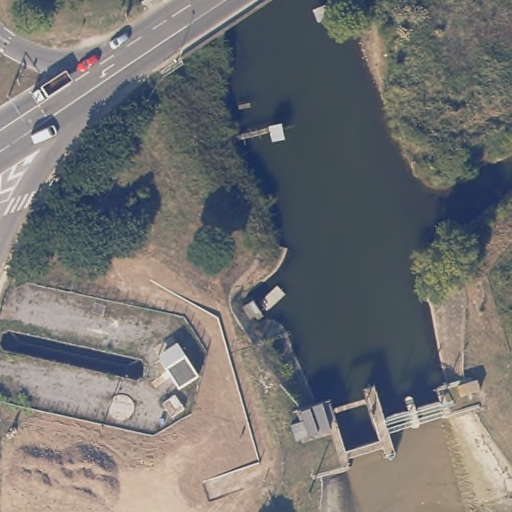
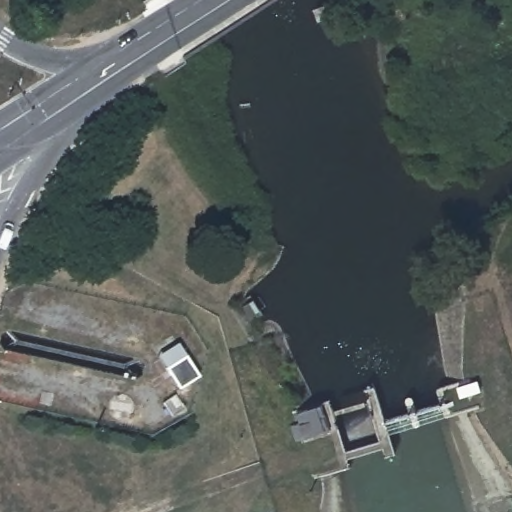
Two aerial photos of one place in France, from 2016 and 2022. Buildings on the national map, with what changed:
unchanged [(165,368),(186,354),(200,376),(180,388),(165,368)]

